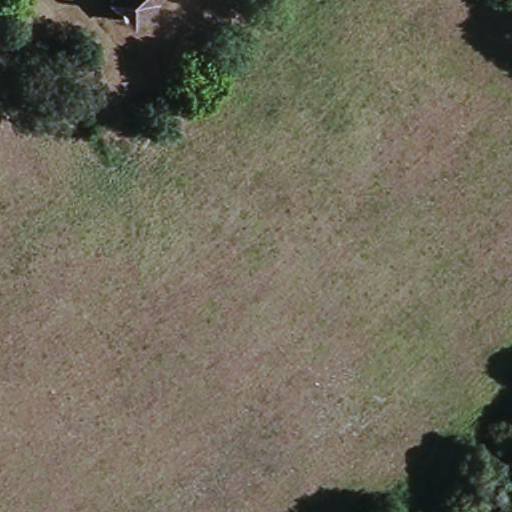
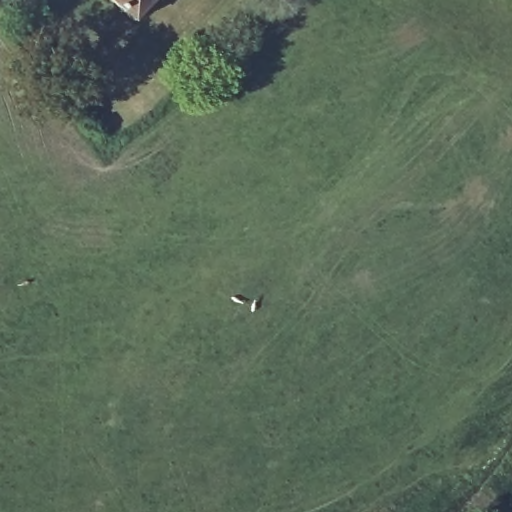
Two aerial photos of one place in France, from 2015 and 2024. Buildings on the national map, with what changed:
unchanged [(109,0),(156,0),(135,23),(109,0)]
unchanged [(86,49),(99,60),(87,72),(75,61),(86,49)]

